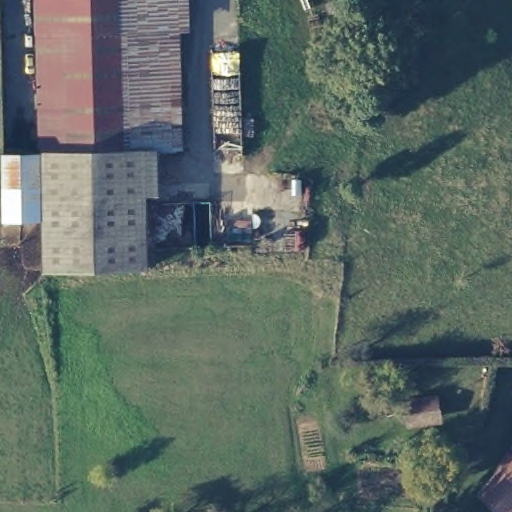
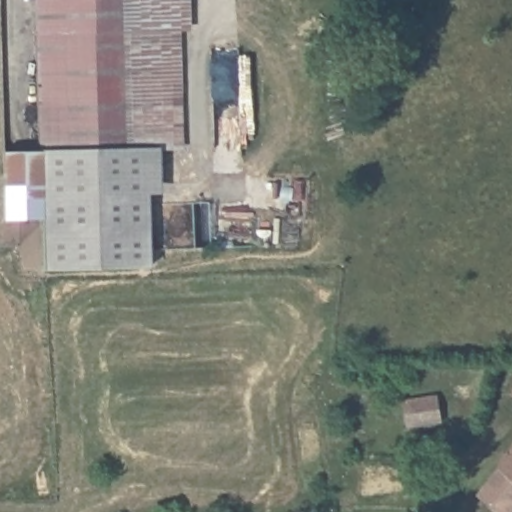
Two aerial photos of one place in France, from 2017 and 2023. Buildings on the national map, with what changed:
unchanged [(148,146),(148,205),(150,250),(150,265),(45,268),(43,217),(43,148),(41,0),(190,0),(190,25),(180,26),(182,145),(148,146)]
unchanged [(12,149),(43,148),(43,217),(13,218),(12,149)]
unchanged [(438,393),(443,424),(407,429),(402,400),(438,393)]
unchanged [(498,512),(478,495),(512,455),(512,512),(498,512)]

